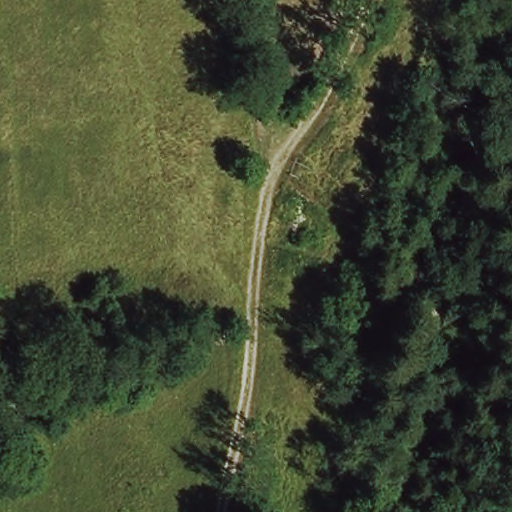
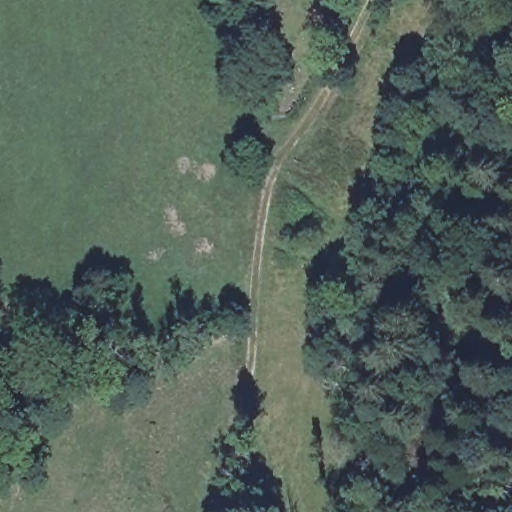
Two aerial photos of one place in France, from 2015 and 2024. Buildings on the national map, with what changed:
unchanged [(331,230),(311,281),(264,261),(282,215),(331,230)]

